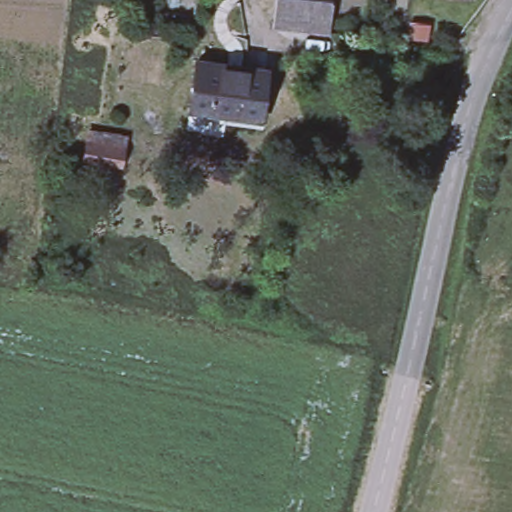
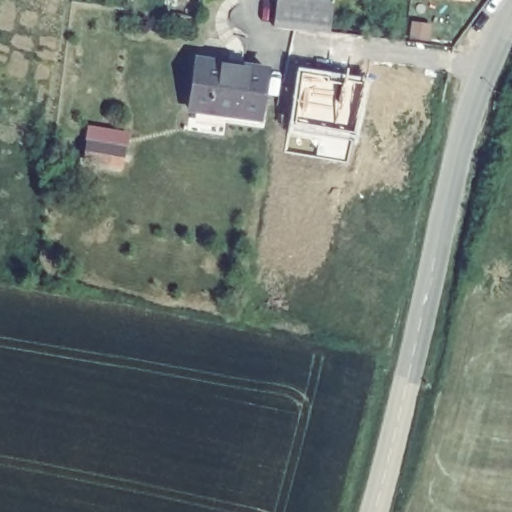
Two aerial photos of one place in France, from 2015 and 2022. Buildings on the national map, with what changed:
unchanged [(328,3),(334,3),(330,34),(330,36),(294,31),(273,28),(277,0),(305,0),(328,3)]
unchanged [(267,65),(261,118),(192,109),(199,56),(267,65)]
new [(368,81),(359,140),(291,130),(301,71),(368,81)]

